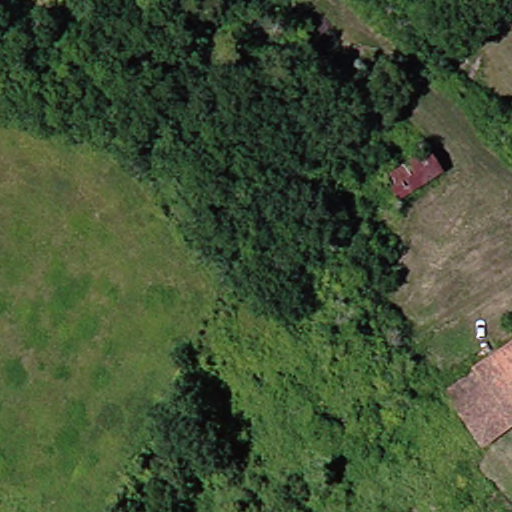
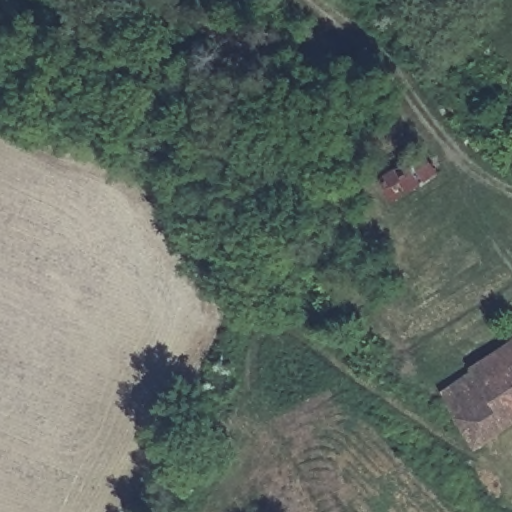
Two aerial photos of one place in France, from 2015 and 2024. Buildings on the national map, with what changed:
unchanged [(392,203),(376,179),(418,148),(433,169),(392,203)]
unchanged [(432,403),(456,382),(452,376),(512,330),(512,408),(468,443),(432,403)]

